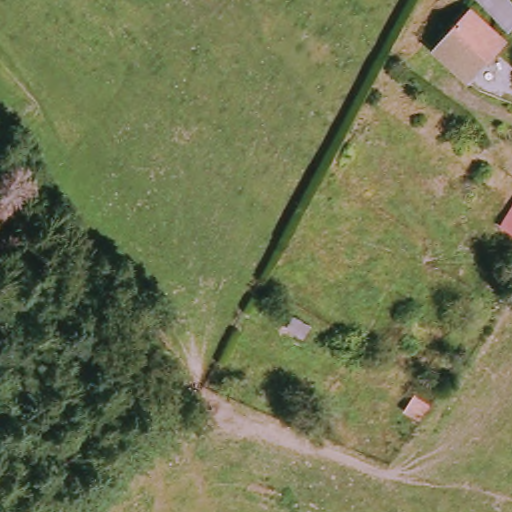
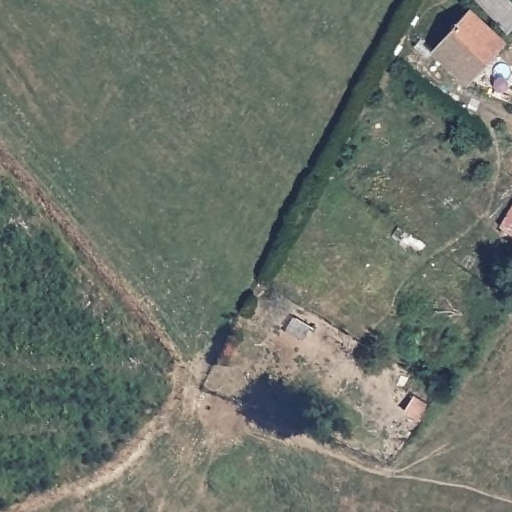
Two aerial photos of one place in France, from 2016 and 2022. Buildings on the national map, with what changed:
unchanged [(505,0),(512,0),(512,7),(505,0)]
unchanged [(477,74),(444,42),(474,6),(508,35),(477,74)]

